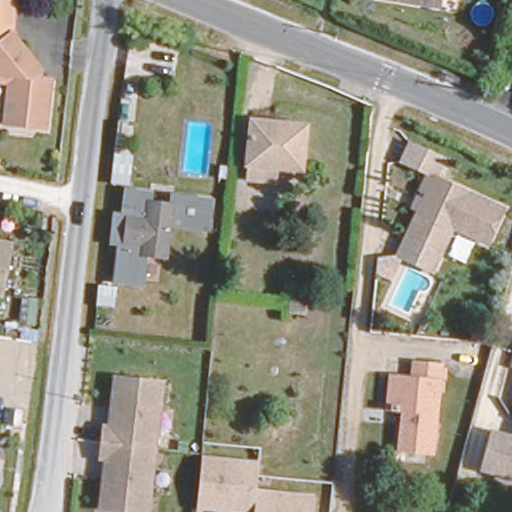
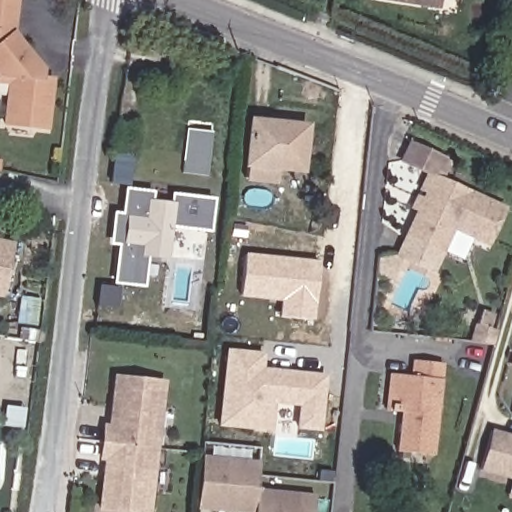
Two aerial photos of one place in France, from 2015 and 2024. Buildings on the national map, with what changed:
unchanged [(39,67),(48,69),(42,119),(9,114),(14,65),(0,64),(0,0),(18,0),(15,25),(40,60),(39,67)]
unchanged [(440,6),(402,0),(441,0),(440,6)]
unchanged [(275,173),(273,183),(240,179),(247,112),(301,118),(297,174),(275,173)]
new [(120,124),(137,125),(134,156),(131,185),(115,183),(117,155),(120,124)]
unchanged [(400,160),(409,141),(441,155),(432,173),(400,160)]
unchanged [(0,170),(0,156),(4,157),(1,170),(0,170)]
unchanged [(453,233),(436,267),(401,252),(417,216),(406,211),(415,190),(425,171),(505,207),(486,247),(453,233)]
unchanged [(142,263),(139,294),(115,291),(120,252),(110,251),(114,225),(120,225),(124,195),(143,196),(142,208),(165,209),(167,197),(206,202),(203,230),(174,227),(169,264),(142,263)]
unchanged [(1,296),(0,296),(0,239),(9,240),(1,296)]
new [(313,319),(278,317),(281,300),(240,297),(245,253),(320,261),(313,319)]
new [(483,312),(496,317),(492,329),(496,330),(492,345),(474,343),(479,325),(483,312)]
unchanged [(512,328),(512,363),(506,361),(512,328)]
new [(326,374),(319,431),(296,429),(298,407),(274,404),(270,432),(217,427),(225,348),(263,353),(262,367),(326,374)]
unchanged [(405,419),(413,420),(416,402),(403,401),(394,401),(398,364),(408,364),(410,352),(447,356),(433,450),(402,447),(405,419)]
unchanged [(107,512),(97,511),(101,460),(95,458),(100,424),(105,424),(110,375),(161,379),(149,512),(107,512)]
unchanged [(490,429),(512,435),(512,480),(480,473),(490,429)]
unchanged [(205,512),(199,511),(202,456),(261,461),(258,489),(316,494),(314,512),(205,512)]

